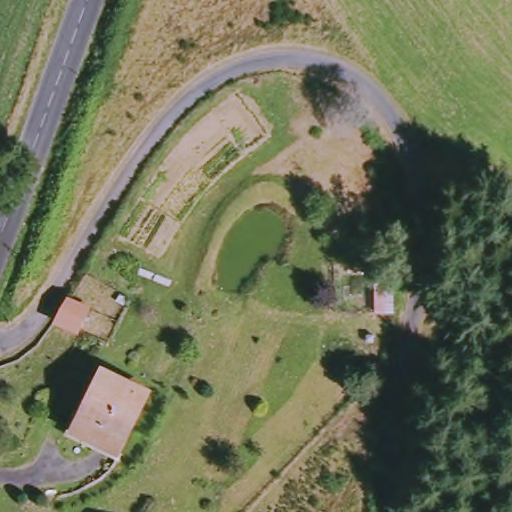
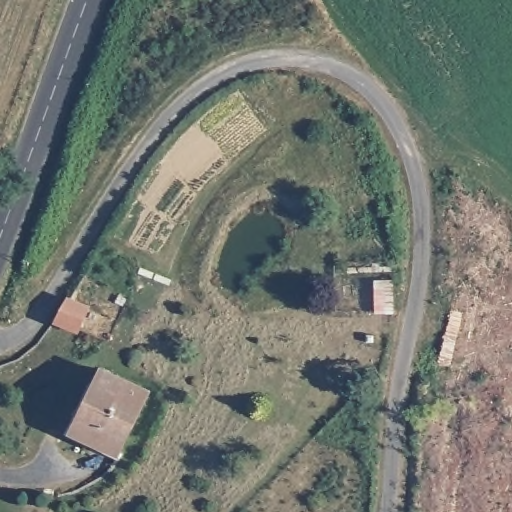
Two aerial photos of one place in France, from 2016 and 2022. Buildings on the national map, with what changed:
unchanged [(90,306),(83,329),(58,322),(66,298),(90,306)]
unchanged [(152,396),(125,457),(77,434),(106,375),(152,396)]

